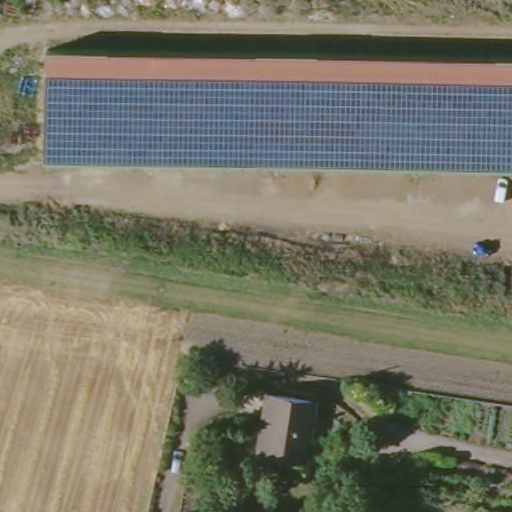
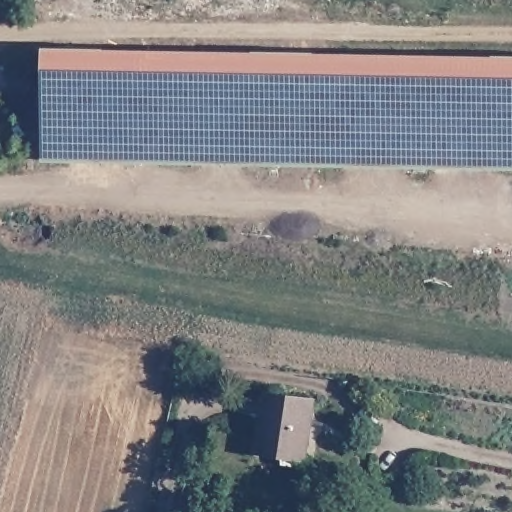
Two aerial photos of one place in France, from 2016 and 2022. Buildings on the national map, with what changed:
unchanged [(47,160),(47,49),(512,58),(512,168),(47,160)]
unchanged [(260,453),(268,393),(313,398),(305,458),(260,453)]

